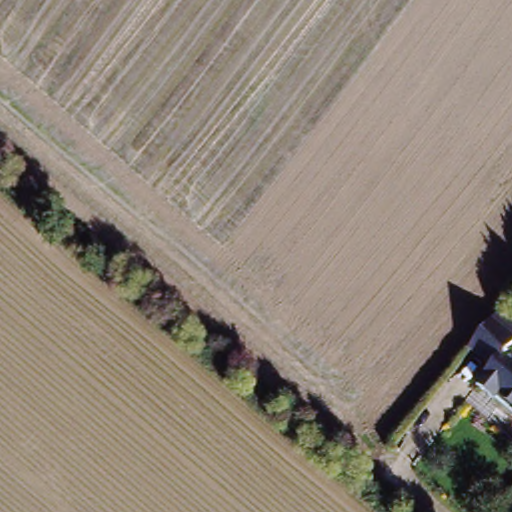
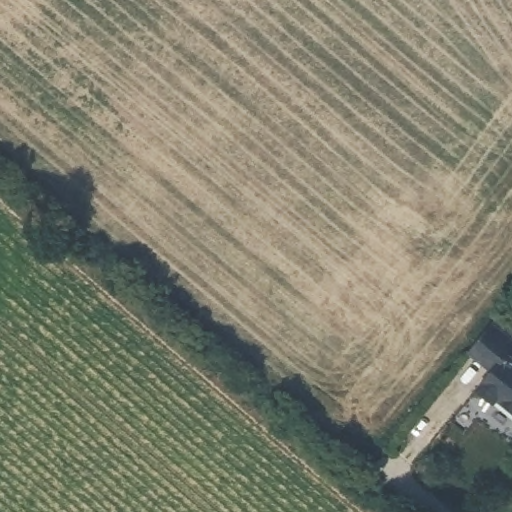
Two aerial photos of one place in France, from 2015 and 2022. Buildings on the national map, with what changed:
unchanged [(512,341),(503,351),(512,359),(512,411),(493,396),(490,399),(473,385),(488,367),(465,348),(487,321),(512,341)]

